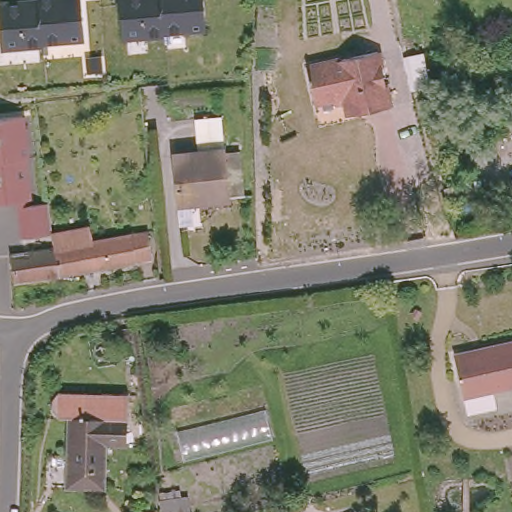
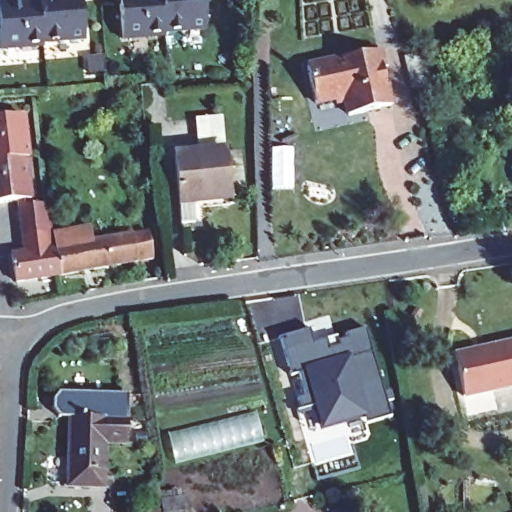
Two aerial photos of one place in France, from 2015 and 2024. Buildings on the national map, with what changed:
unchanged [(87,42),(1,51),(0,26),(0,1),(8,0),(83,0),(87,42)]
unchanged [(206,33),(121,42),(119,0),(203,0),(206,33)]
unchanged [(332,91),(311,96),(301,59),(373,44),(385,98),(344,107),(341,96),(334,97),(332,91)]
new [(420,53),(427,82),(410,86),(403,56),(420,53)]
unchanged [(47,233),(20,237),(15,203),(0,205),(0,119),(25,117),(33,205),(46,204),(47,233)]
unchanged [(173,158),(223,154),(240,152),(244,198),(228,200),(178,206),(173,158)]
unchanged [(49,247),(47,233),(85,226),(87,240),(142,229),(146,256),(53,273),(49,247)]
unchanged [(11,279),(7,253),(49,247),(53,273),(11,279)]
new [(320,431),(301,370),(291,373),(280,338),(309,330),(313,345),(327,340),(329,346),(366,335),(390,416),(365,423),(363,418),(320,431)]
unchanged [(512,337),(512,380),(491,384),(467,389),(459,348),(483,343),(512,337)]
unchanged [(70,431),(71,413),(60,413),(52,408),(52,393),(60,387),(127,388),(127,430),(70,431)]
unchanged [(127,430),(127,438),(105,439),(103,482),(69,481),(70,431),(127,430)]
unchanged [(186,498),(193,497),(196,512),(167,512),(164,494),(185,492),(186,498)]

